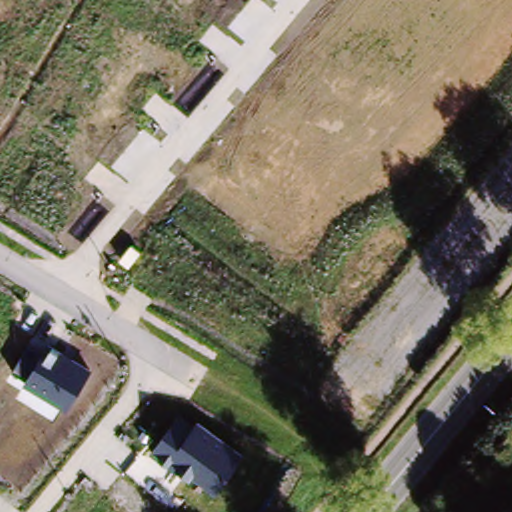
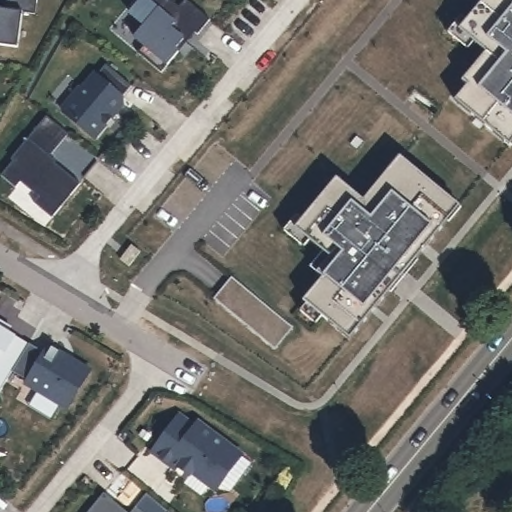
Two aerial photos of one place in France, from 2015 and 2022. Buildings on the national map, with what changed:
new [(25,13),(20,47),(0,45),(0,8),(3,8),(5,0),(40,0),(38,14),(25,13)]
new [(468,85),(463,81),(475,67),(482,74),(495,59),(460,31),(485,0),(512,0),(512,134),(505,142),(455,101),(468,85)]
new [(185,37),(176,46),(180,49),(162,69),(138,49),(145,42),(135,33),(145,21),(140,17),(150,5),(160,13),(170,1),(186,15),(193,7),(205,18),(196,29),(186,21),(178,31),(185,37)]
new [(83,88),(95,74),(96,76),(106,65),(131,86),(122,97),(123,105),(95,138),(62,112),(62,108),(80,88),(83,88)]
new [(72,137),(55,158),(61,163),(60,164),(85,185),(56,220),(38,204),(43,199),(25,184),(20,189),(5,177),(18,163),(15,161),(50,119),(72,137)]
new [(305,301),(325,277),(318,273),(331,257),(297,228),(338,178),(373,207),(385,192),(377,186),(388,172),(393,176),(406,161),(456,202),(443,217),(448,221),(417,258),(412,254),(385,287),(390,291),(351,338),(305,301)]
new [(131,245),(140,252),(128,265),(120,259),(131,245)]
new [(293,326),(275,348),(214,297),(231,276),(293,326)]
new [(7,330),(15,335),(5,351),(20,359),(0,391),(0,319),(10,325),(7,330)]
unchanged [(42,353),(47,344),(91,369),(67,408),(24,384),(28,377),(15,369),(27,345),(42,353)]
unchanged [(193,425),(197,419),(244,452),(217,490),(193,474),(191,478),(152,451),(179,416),(193,425)]
new [(101,491),(127,512),(83,512),(101,491)]
new [(146,493),(167,511),(167,512),(131,512),(146,493)]

